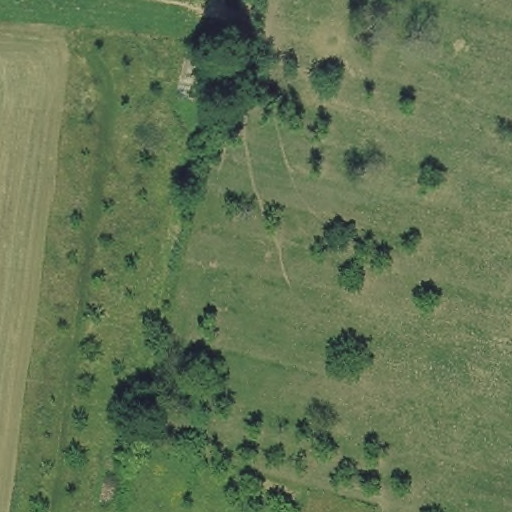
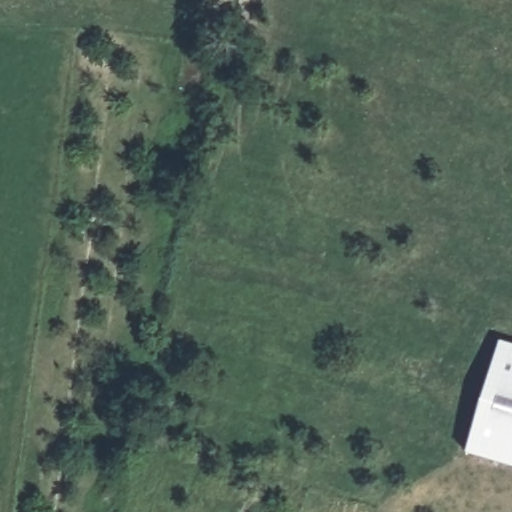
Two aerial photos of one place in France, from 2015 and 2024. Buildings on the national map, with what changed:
new [(479,404),(500,340),(512,344),(512,467),(465,454),(479,404)]

